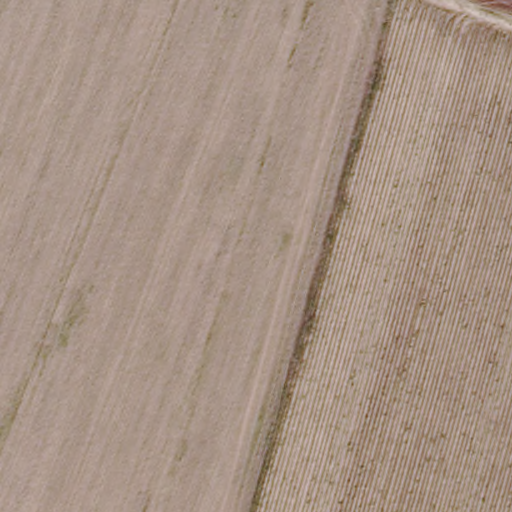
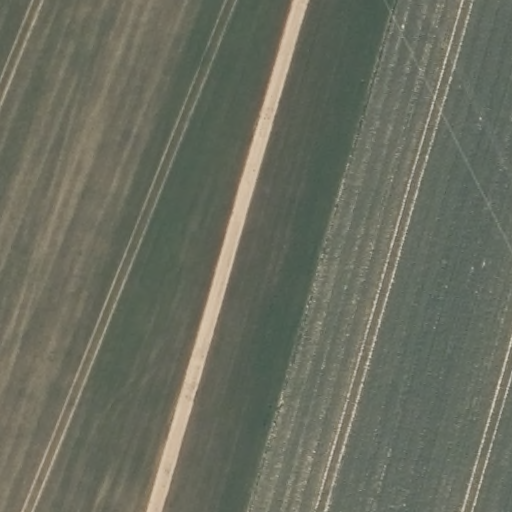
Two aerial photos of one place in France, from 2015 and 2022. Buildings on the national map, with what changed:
[]

